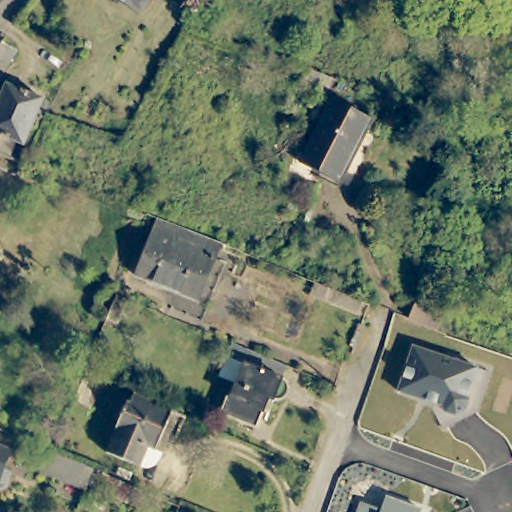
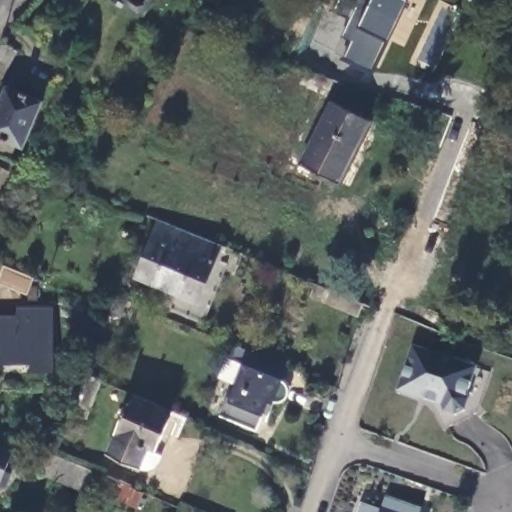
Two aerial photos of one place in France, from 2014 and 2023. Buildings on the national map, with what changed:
unchanged [(121,0),(149,0),(141,13),(121,0)]
new [(383,43),(368,74),(340,60),(351,37),(341,32),(347,21),(330,13),(336,0),(368,0),(370,1),(370,0),(405,0),(408,1),(386,44),(383,43)]
unchanged [(1,66),(0,67),(0,65),(1,66)]
unchanged [(4,86),(39,100),(20,146),(0,137),(0,95),(4,86)]
unchanged [(298,159),(330,96),(366,115),(335,177),(298,159)]
unchanged [(132,279),(154,221),(229,251),(200,326),(167,312),(173,297),(132,279)]
unchanged [(356,312),(310,293),(316,280),(362,300),(356,312)]
unchanged [(123,303),(114,326),(102,321),(111,298),(123,303)]
unchanged [(431,325),(403,314),(408,301),(436,312),(431,325)]
new [(55,306),(57,372),(32,372),(32,363),(2,364),(2,353),(0,353),(0,315),(18,315),(18,307),(55,306)]
unchanged [(443,430),(434,405),(397,392),(414,347),(476,368),(489,372),(475,414),(443,430)]
unchanged [(271,370),(279,373),(274,385),(277,387),(280,388),(282,391),(283,394),(284,397),(283,400),(282,403),(280,406),(277,408),(274,409),(271,409),(268,409),(265,407),(254,436),(218,422),(224,405),(226,406),(245,359),(271,370)]
unchanged [(84,377),(99,383),(87,413),(73,408),(84,377)]
unchanged [(108,451),(129,400),(133,401),(136,393),(174,409),(157,450),(149,447),(142,466),(108,451)]
unchanged [(4,453),(0,461),(0,451),(4,453)]
unchanged [(82,491),(40,474),(48,456),(90,473),(82,491)]
unchanged [(2,473),(0,477),(0,473),(2,473)]
unchanged [(360,503),(381,511),(387,497),(421,509),(420,512),(357,512),(360,503)]

